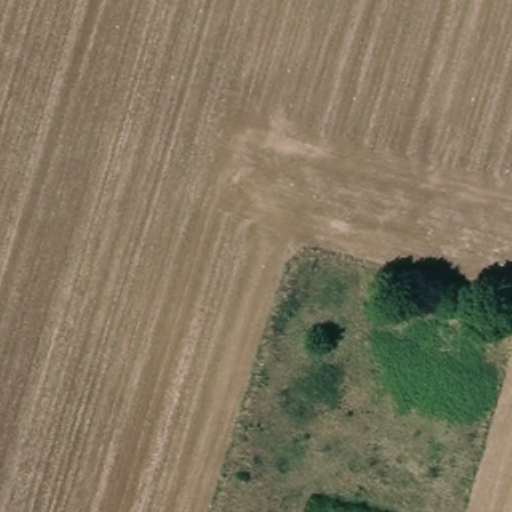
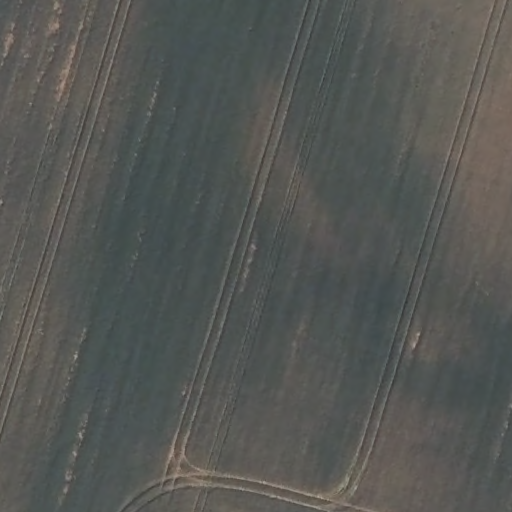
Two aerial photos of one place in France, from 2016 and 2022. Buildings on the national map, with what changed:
[]

